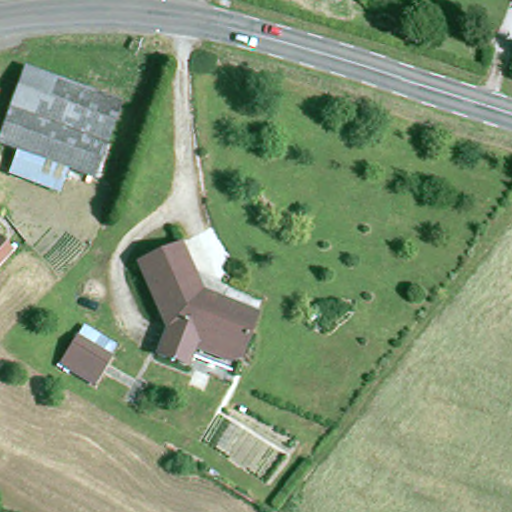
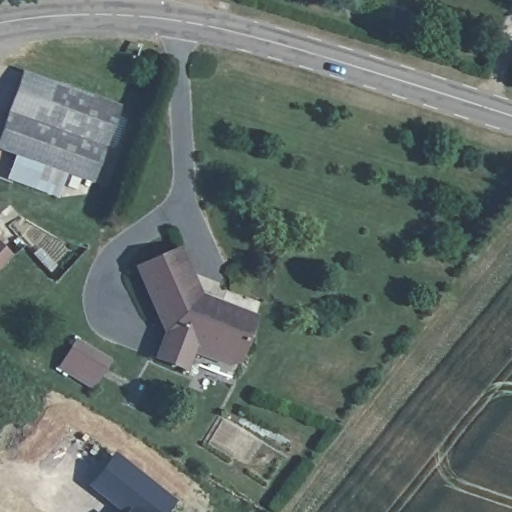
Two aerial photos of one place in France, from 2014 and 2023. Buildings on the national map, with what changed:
unchanged [(0,150),(0,142),(24,75),(117,108),(92,182),(69,174),(17,156),(0,150)]
unchanged [(60,196),(10,178),(17,156),(69,174),(60,196)]
unchanged [(0,268),(0,240),(14,254),(0,268)]
unchanged [(192,357),(187,374),(156,363),(169,326),(161,323),(140,272),(183,252),(199,293),(196,301),(211,307),(213,301),(256,319),(241,364),(227,359),(224,368),(192,357)]
unchanged [(117,350),(91,392),(56,370),(82,327),(117,350)]
new [(170,500),(162,512),(125,512),(93,487),(116,459),(170,500)]

